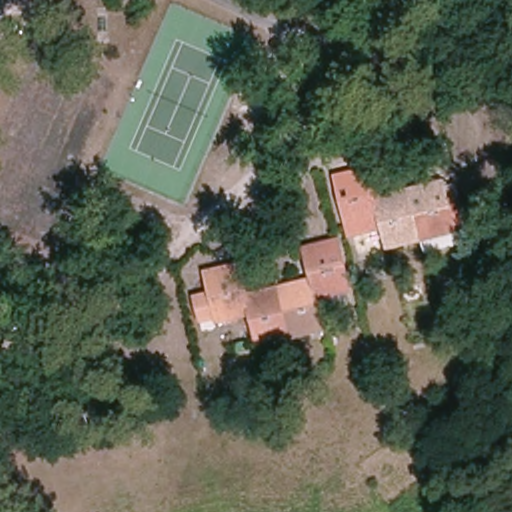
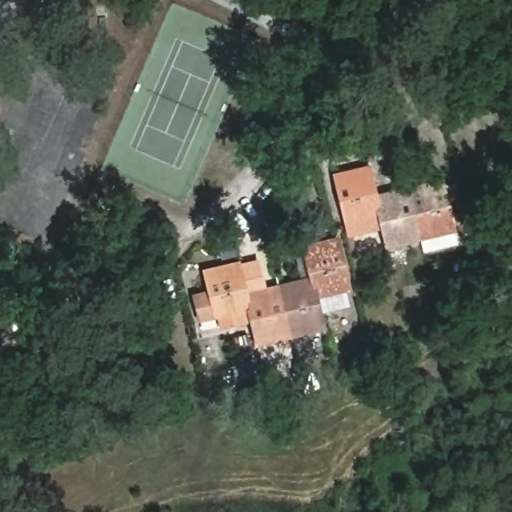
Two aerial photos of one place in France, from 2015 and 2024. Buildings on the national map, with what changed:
unchanged [(335,173),(373,166),(383,191),(445,182),(456,242),(394,253),(380,222),(346,229),(335,173)]
unchanged [(250,315),(198,325),(194,295),(208,290),(207,270),(245,264),(253,293),(312,278),(308,242),(342,238),(348,294),(317,299),(321,341),(258,350),(250,315)]

